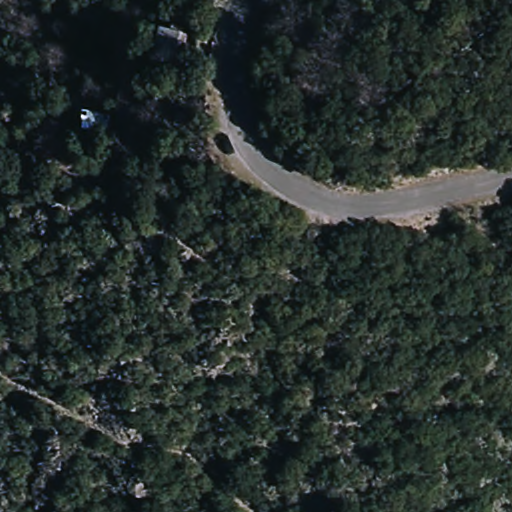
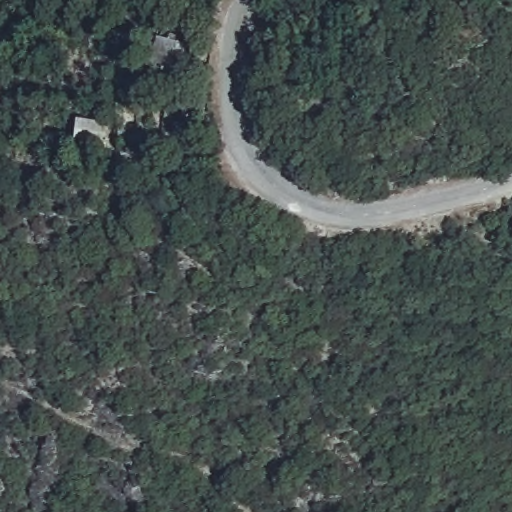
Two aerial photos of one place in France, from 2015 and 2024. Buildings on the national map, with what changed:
unchanged [(183,63),(165,59),(152,56),(156,38),(169,42),(171,35),(182,38),(181,44),(187,46),(183,63)]
unchanged [(108,142),(81,141),(81,123),(109,124),(108,142)]

